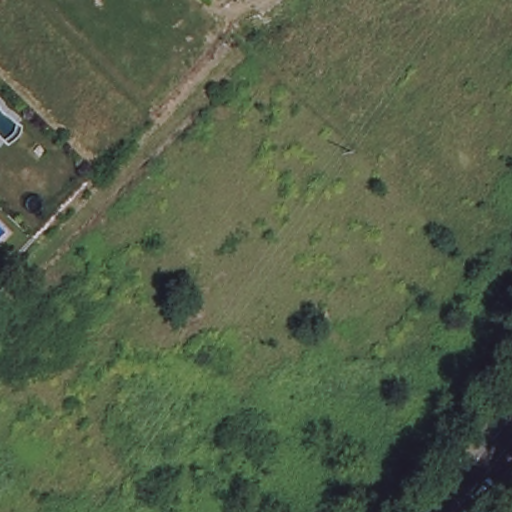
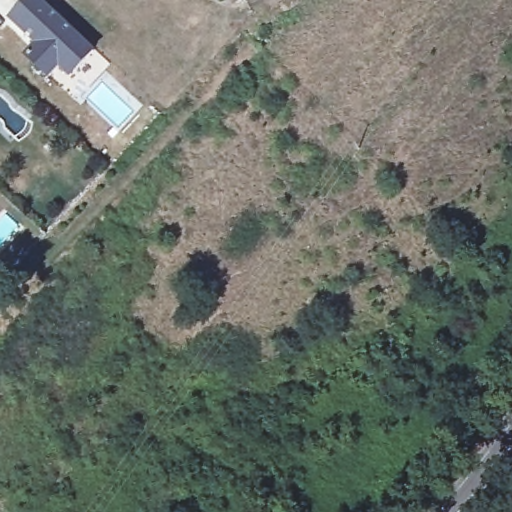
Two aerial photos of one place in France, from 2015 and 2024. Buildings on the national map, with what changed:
new [(45,0),(103,54),(80,79),(68,69),(58,81),(36,60),(46,48),(20,24),(42,0),(45,0)]

